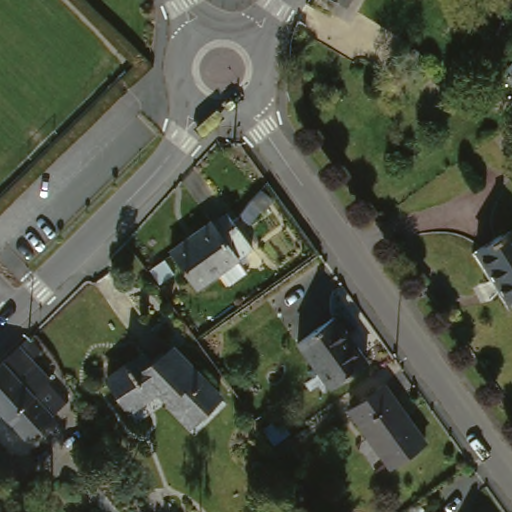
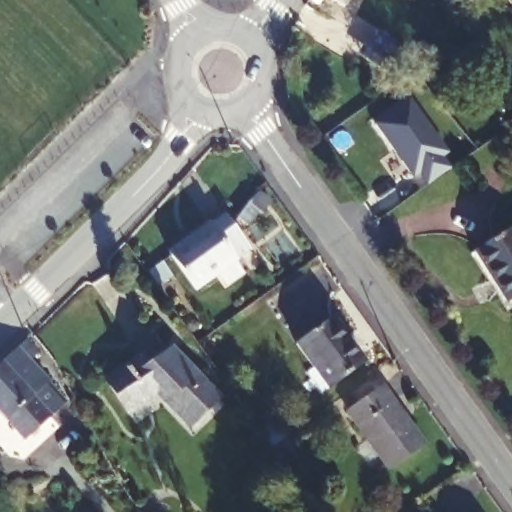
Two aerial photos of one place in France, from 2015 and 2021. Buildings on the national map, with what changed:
unchanged [(331,0),(351,0),(346,10),(331,0)]
unchanged [(510,79),(512,76),(512,82),(510,79)]
new [(420,174),(413,178),(376,122),(411,97),(449,152),(443,157),(451,168),(428,184),(420,174)]
unchanged [(251,181),(266,190),(257,202),(252,201),(243,214),(232,207),(251,181)]
unchanged [(223,212),(247,244),(231,257),(240,269),(221,282),(211,270),(191,286),(164,249),(223,212)]
unchanged [(512,218),(512,299),(510,301),(474,242),(512,218)]
unchanged [(335,315),(365,357),(330,383),(329,382),(322,386),(310,368),(317,363),(301,340),(335,315)]
unchanged [(56,423),(32,446),(0,412),(0,357),(21,336),(33,348),(25,357),(53,387),(71,408),(68,412),(56,423)]
unchanged [(146,358),(157,371),(177,351),(222,399),(193,429),(161,397),(135,418),(112,388),(146,358)]
unchanged [(384,381),(424,437),(389,464),(348,407),(384,381)]
unchanged [(296,467),(288,457),(277,441),(286,435),(290,440),(299,435),(306,445),(302,447),(310,458),(296,467)]

